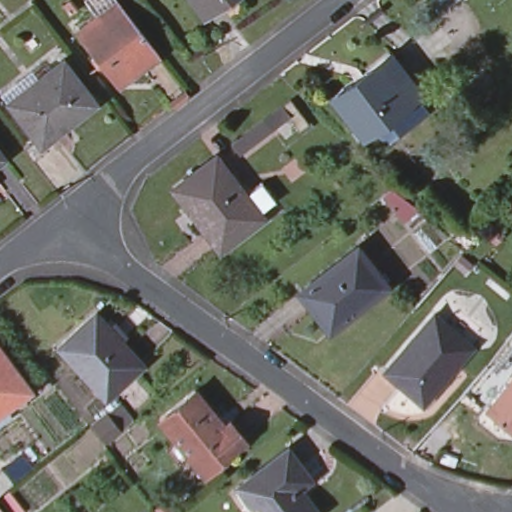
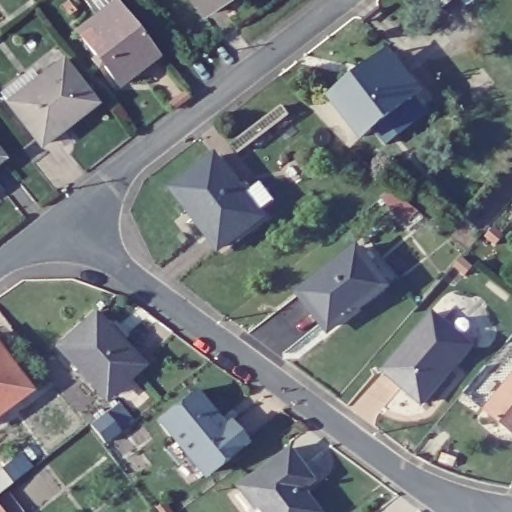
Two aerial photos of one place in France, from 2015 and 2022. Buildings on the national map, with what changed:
unchanged [(195,0),(214,0),(201,9),(195,0)]
unchanged [(220,0),(226,0),(221,3),(220,0)]
unchanged [(117,1),(158,55),(118,85),(77,32),(117,1)]
unchanged [(388,54),(418,93),(360,137),(330,97),(388,54)]
unchanged [(62,62),(95,104),(82,113),(58,131),(26,89),(50,71),(62,62)]
unchanged [(26,89),(58,131),(40,145),(8,103),(26,89)]
unchanged [(2,158),(0,160),(0,155),(2,158)]
unchanged [(213,157),(243,195),(260,182),(274,199),(257,212),(260,217),(218,249),(194,216),(200,211),(178,182),(213,157)]
unchanged [(385,286),(358,306),(356,303),(325,328),(297,292),(355,247),(385,286)]
unchanged [(97,312),(111,328),(110,330),(142,365),(110,395),(87,370),(84,373),(59,347),(97,312)]
unchanged [(473,348),(425,406),(386,372),(435,316),(473,348)]
unchanged [(30,389),(0,412),(0,348),(30,389)]
unchanged [(512,383),(512,429),(489,411),(512,383)]
unchanged [(187,392),(214,427),(222,420),(237,440),(196,472),(154,417),(187,392)]
unchanged [(109,413),(122,431),(107,442),(93,426),(109,413)]
unchanged [(244,507),(250,502),(236,483),(285,446),(306,474),(296,482),(302,489),(316,508),(311,512),(248,512),(244,507)]
unchanged [(7,484),(0,490),(0,474),(7,484)]

